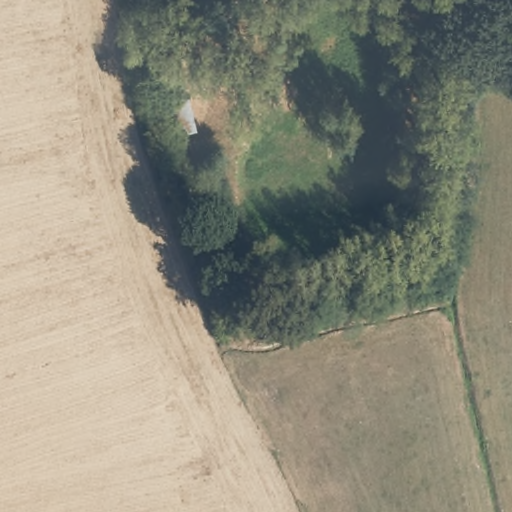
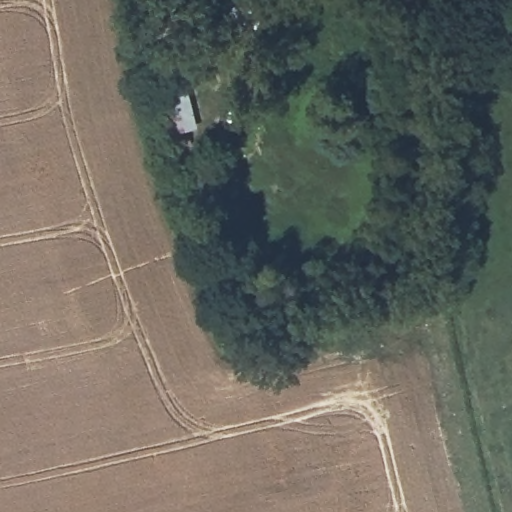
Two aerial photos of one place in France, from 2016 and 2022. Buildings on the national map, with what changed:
unchanged [(181,142),(173,107),(190,103),(199,139),(181,142)]

